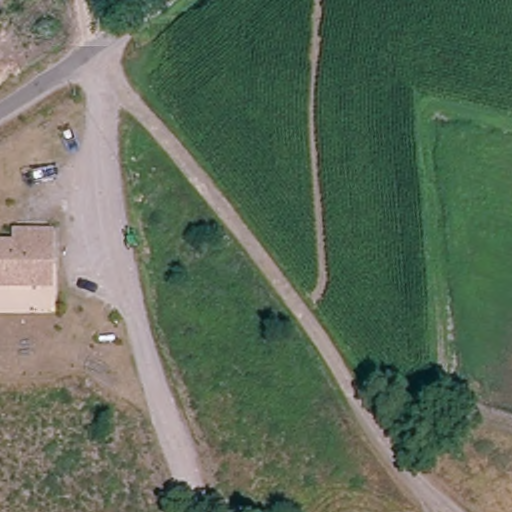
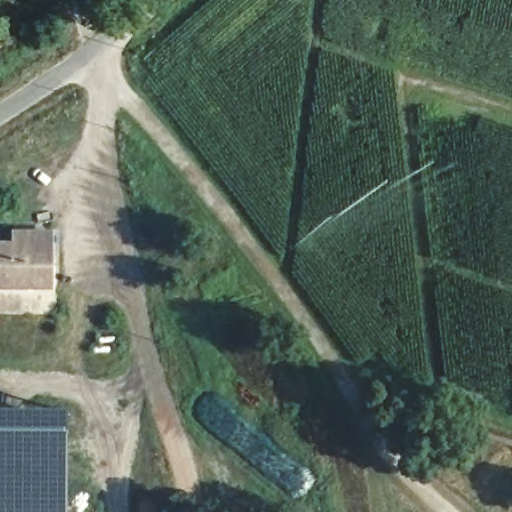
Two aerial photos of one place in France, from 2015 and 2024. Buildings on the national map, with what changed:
unchanged [(45,281),(0,283),(0,242),(21,241),(20,229),(57,227),(59,260),(59,281),(45,281)]
new [(67,411),(67,512),(0,512),(0,410),(67,411)]

